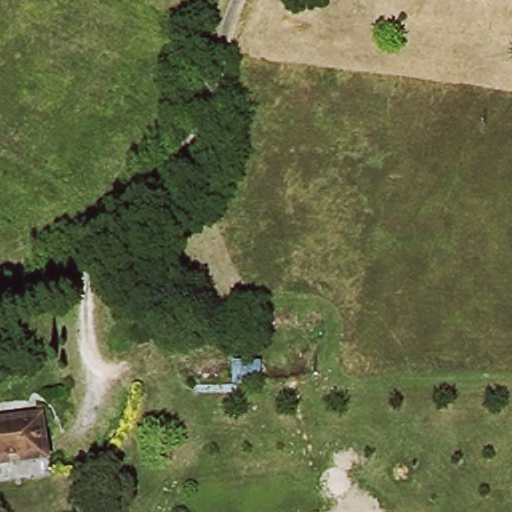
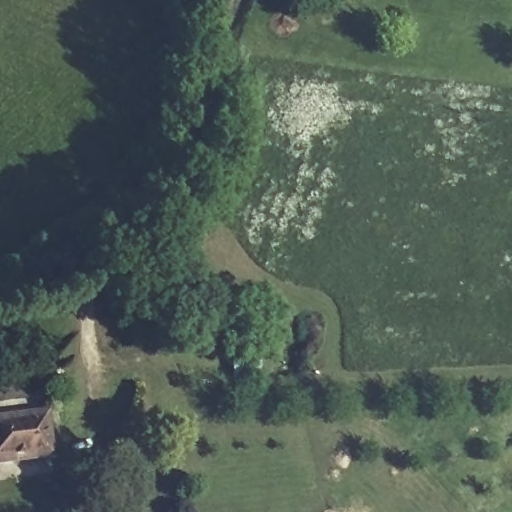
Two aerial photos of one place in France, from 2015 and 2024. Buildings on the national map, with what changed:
unchanged [(0,417),(46,415),(48,460),(0,463),(0,417)]

